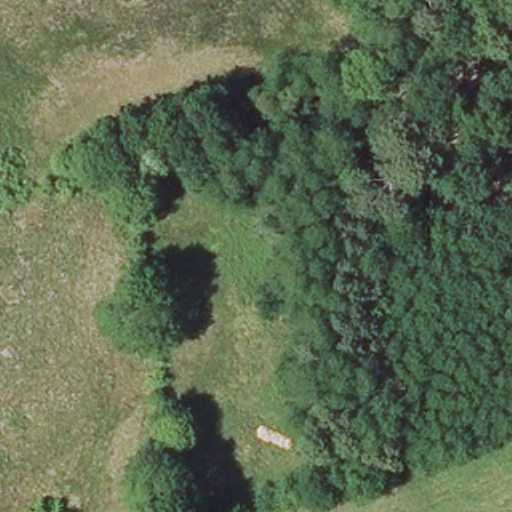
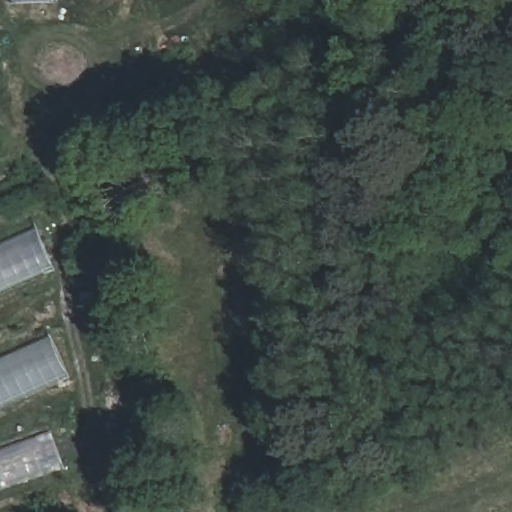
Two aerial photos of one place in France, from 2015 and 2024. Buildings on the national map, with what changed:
new [(59,0),(59,3),(16,4),(16,0),(59,0)]
new [(40,229),(56,267),(0,292),(0,247),(40,229)]
new [(70,376),(0,408),(0,361),(53,337),(70,376)]
new [(53,434),(66,469),(2,491),(0,484),(0,453),(53,434)]

